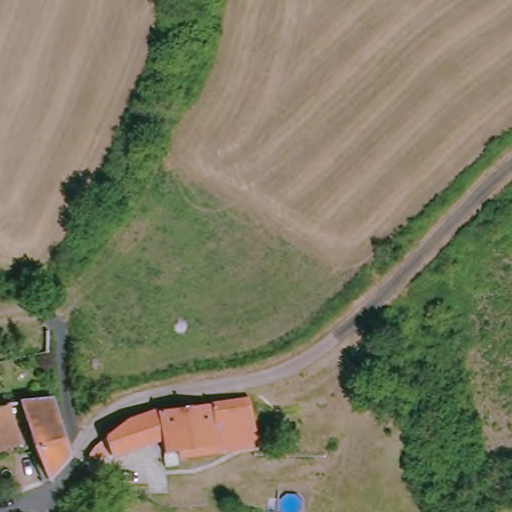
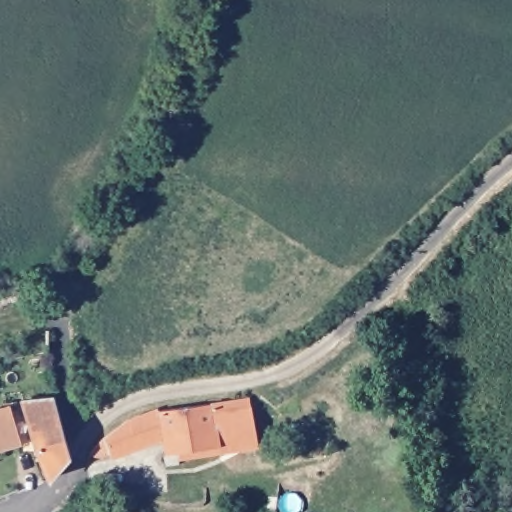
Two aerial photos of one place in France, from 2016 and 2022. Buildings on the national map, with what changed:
unchanged [(33,465),(37,462),(30,443),(15,446),(16,455),(3,457),(1,445),(0,445),(0,402),(1,399),(48,393),(62,453),(43,477),(39,477),(33,465)]
unchanged [(214,447),(158,457),(156,439),(105,456),(100,437),(125,421),(152,412),(243,398),(245,401),(250,426),(250,430),(251,447),(215,452),(214,447)]

